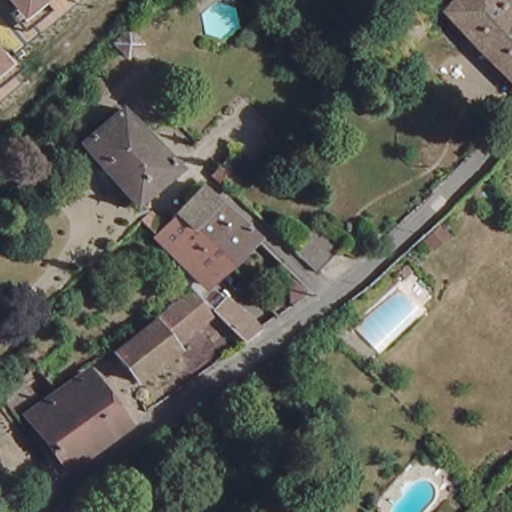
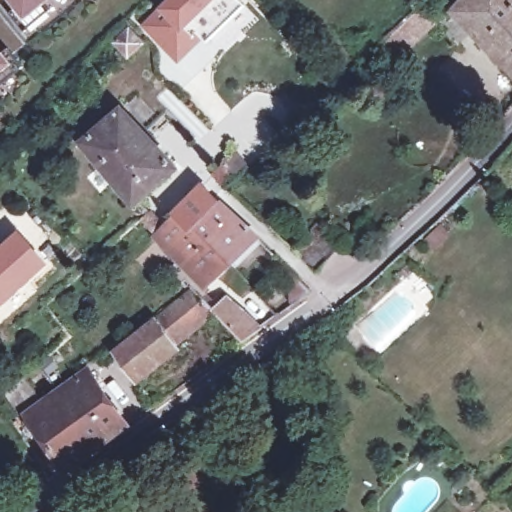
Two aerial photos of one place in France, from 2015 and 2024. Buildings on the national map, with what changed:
unchanged [(6,0),(47,0),(22,20),(6,0)]
new [(203,37),(193,27),(185,35),(187,36),(172,52),(141,20),(162,0),(241,0),(203,37)]
unchanged [(413,7),(407,1),(408,0),(421,0),(413,7)]
unchanged [(462,0),(512,0),(512,82),(447,16),(462,0)]
unchanged [(127,27),(140,41),(125,53),(113,41),(127,27)]
unchanged [(0,54),(8,64),(0,72),(0,54)]
unchanged [(118,107),(175,166),(132,201),(80,139),(118,107)]
unchanged [(232,148),(247,164),(225,184),(210,171),(223,157),(232,148)]
unchanged [(200,188),(213,201),(217,204),(254,240),(230,262),(228,265),(203,288),(171,255),(154,237),(142,224),(150,216),(162,229),(175,215),(200,188)]
unchanged [(303,232),(314,220),(340,244),(314,269),(295,250),(308,236),(303,232)]
new [(48,263),(0,307),(0,243),(17,228),(48,263)]
unchanged [(412,264),(402,274),(397,267),(407,258),(412,264)]
unchanged [(310,288),(293,301),(293,272),(310,288)]
unchanged [(240,344),(226,330),(210,314),(188,292),(212,291),(242,318),(256,332),(240,344)]
unchanged [(208,317),(172,347),(177,353),(134,385),(111,355),(187,295),(208,317)]
unchanged [(25,374),(46,402),(91,370),(128,421),(68,464),(33,415),(23,422),(2,394),(25,374)]
unchanged [(463,491),(470,497),(465,504),(457,497),(463,491)]
unchanged [(68,512),(74,506),(79,512),(68,512)]

